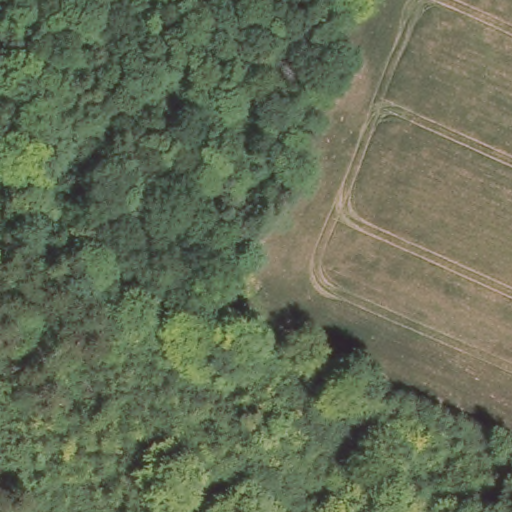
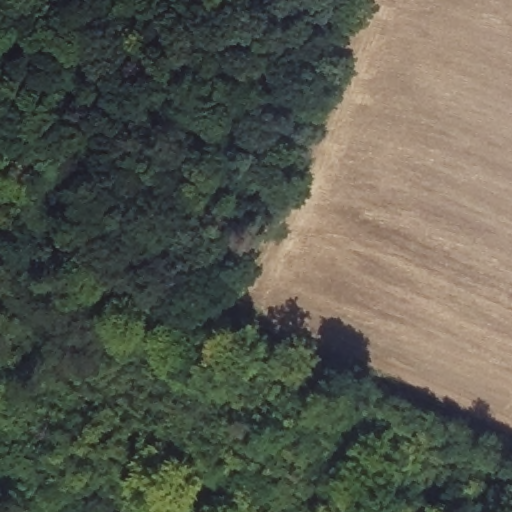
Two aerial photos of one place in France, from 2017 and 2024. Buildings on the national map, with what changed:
unchanged [(98,82),(107,88),(100,99),(90,93),(98,82)]

